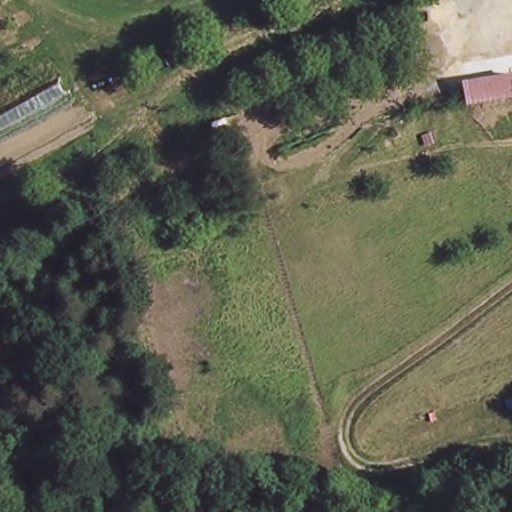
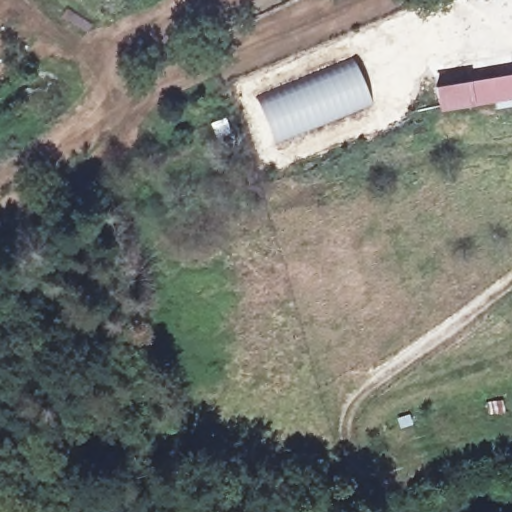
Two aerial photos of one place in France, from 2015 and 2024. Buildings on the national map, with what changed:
new [(353,57),(373,104),(274,143),(255,97),(353,57)]
new [(472,103),(439,108),(435,85),(470,79),(512,72),(512,104),(496,107),(494,100),(472,103)]

